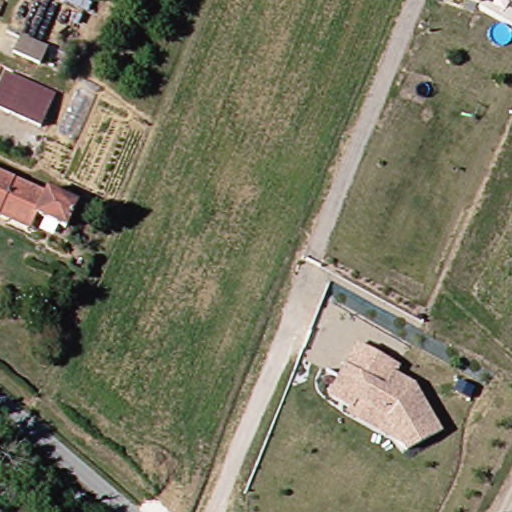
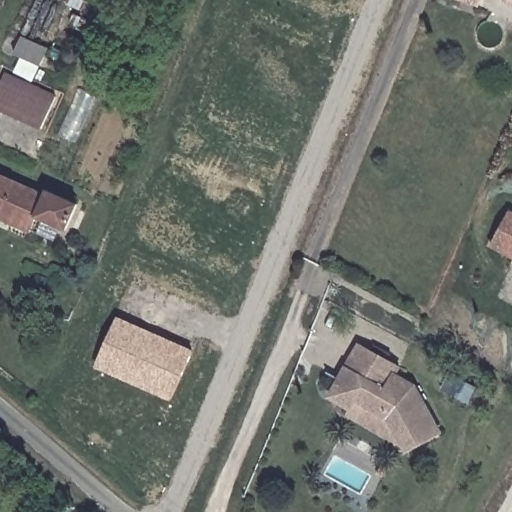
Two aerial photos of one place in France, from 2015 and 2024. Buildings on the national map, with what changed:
unchanged [(481,0),(477,6),(460,0),(481,0)]
unchanged [(502,0),(512,0),(512,6),(502,0)]
unchanged [(53,53),(44,71),(16,57),(24,42),(53,53)]
unchanged [(46,132),(0,111),(0,97),(8,80),(59,102),(46,132)]
unchanged [(52,192),(83,205),(72,230),(44,220),(36,236),(0,220),(0,174),(50,197),(52,192)]
new [(509,210),(512,211),(512,259),(490,249),(509,210)]
new [(117,317),(193,351),(170,402),(94,367),(117,317)]
unchanged [(354,403),(332,391),(343,373),(349,362),(363,338),(402,362),(397,370),(416,382),(442,431),(408,448),(404,441),(351,408),(354,403)]

